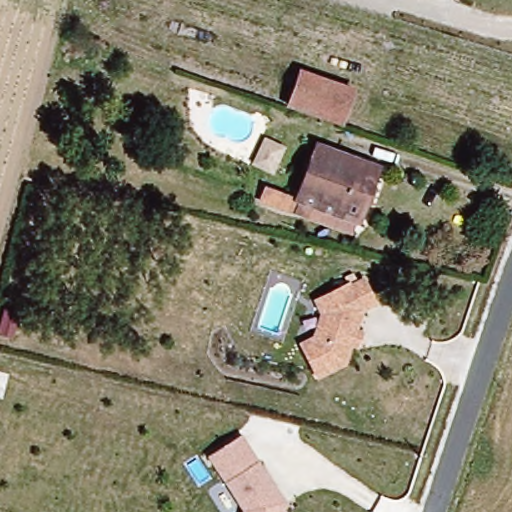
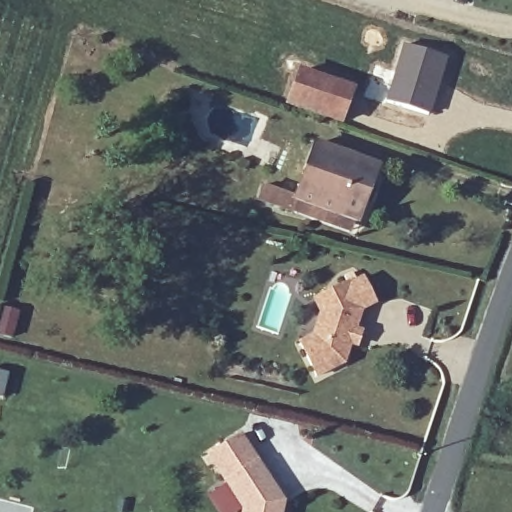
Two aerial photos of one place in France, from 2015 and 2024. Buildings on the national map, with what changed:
new [(403,41),(448,56),(430,114),(384,101),(403,41)]
unchanged [(296,71),(349,88),(338,124),(285,107),(296,71)]
unchanged [(285,149),(272,177),(251,166),(262,142),(285,149)]
unchanged [(287,215),(255,204),(260,189),(291,201),(312,147),(372,170),(352,223),(347,236),(287,215)]
unchanged [(358,352),(352,349),(346,368),(318,380),(302,348),(316,342),(322,318),(316,304),(330,298),(350,289),(351,291),(364,285),(376,309),(362,315),(362,317),(356,336),(363,338),(358,352)]
unchanged [(9,333),(0,330),(0,306),(1,304),(16,308),(9,333)]
unchanged [(281,512),(241,512),(207,460),(237,439),(282,506),(281,512)]

